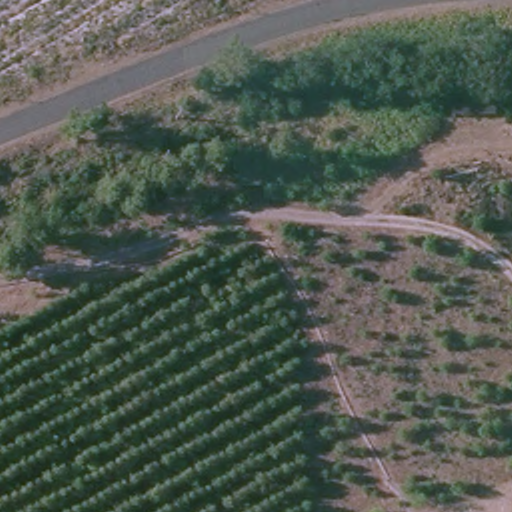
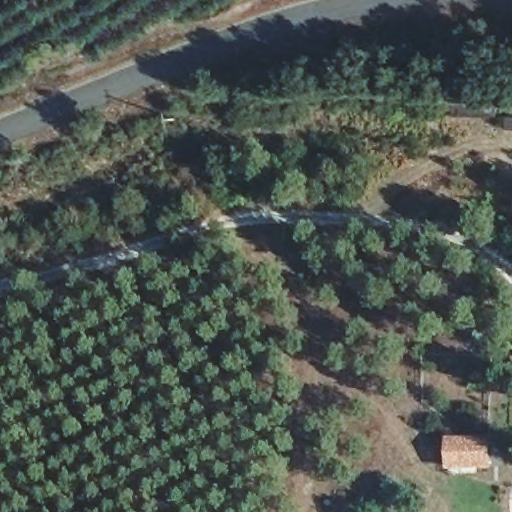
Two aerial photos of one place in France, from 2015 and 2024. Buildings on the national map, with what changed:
new [(448,471),(447,439),(492,438),(492,471),(448,471)]

